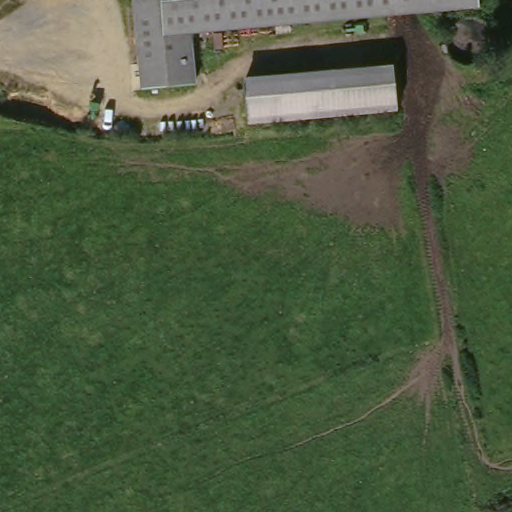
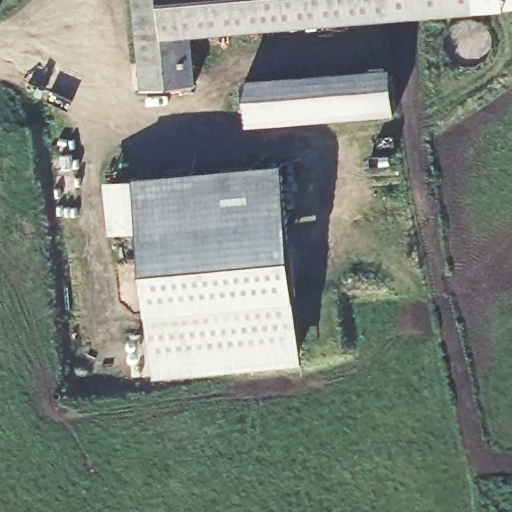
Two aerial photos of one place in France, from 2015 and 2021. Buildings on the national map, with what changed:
unchanged [(197,36),(199,84),(144,89),(135,0),(483,0),(484,7),(197,36)]
unchanged [(400,119),(245,131),(239,78),(393,68),(400,119)]
new [(132,179),(282,163),(304,362),(154,379),(138,230),(108,234),(103,182),(132,179)]

